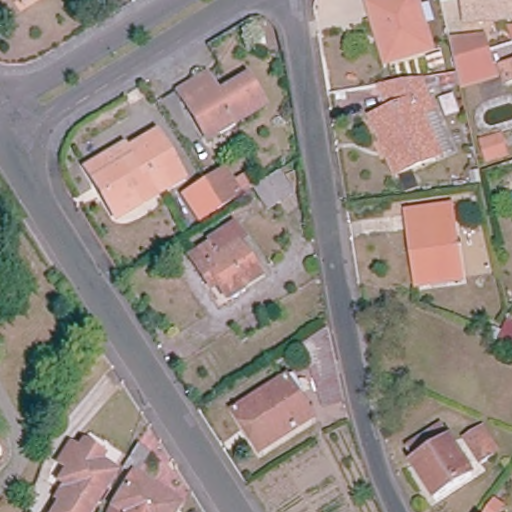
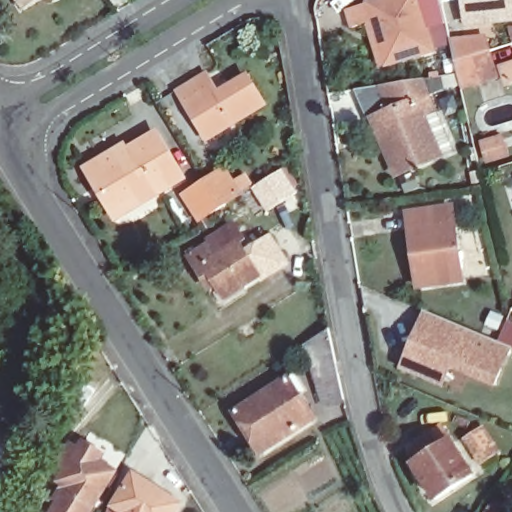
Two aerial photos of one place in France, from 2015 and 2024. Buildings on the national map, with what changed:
unchanged [(17,0),(41,0),(23,11),(17,0)]
unchanged [(420,0),(433,51),(388,61),(373,0),(375,0),(420,0)]
unchanged [(474,28),(468,0),(512,0),(512,19),(474,28)]
unchanged [(457,73),(451,40),(489,35),(500,84),(426,98),(421,81),(457,73)]
unchanged [(205,71),(217,93),(247,74),(266,107),(208,143),(175,90),(205,71)]
unchanged [(426,98),(429,105),(432,119),(424,121),(438,166),(394,179),(375,118),(392,113),(385,87),(421,81),(426,98)]
unchanged [(87,174),(124,147),(128,155),(156,135),(183,179),(161,194),(154,185),(112,215),(87,174)]
unchanged [(293,192),(271,209),(254,185),(278,170),(293,192)]
unchanged [(223,171),(238,196),(221,209),(204,220),(187,192),(205,181),(223,171)]
unchanged [(458,210),(468,280),(422,286),(413,216),(458,210)]
unchanged [(206,234),(214,245),(235,231),(257,265),(222,288),(209,267),(201,271),(185,246),(206,234)]
new [(497,341),(506,320),(512,323),(512,349),(495,387),(450,370),(442,388),(398,370),(423,310),(497,341)]
unchanged [(331,335),(346,401),(325,406),(310,348),(331,335)]
unchanged [(285,377),(310,416),(258,451),(233,411),(285,377)]
unchanged [(486,425),(504,452),(486,466),(466,438),(486,425)]
unchanged [(442,427),(475,475),(438,499),(409,452),(442,427)]
unchanged [(60,495),(56,492),(64,478),(59,476),(67,462),(59,457),(70,440),(79,445),(83,437),(100,447),(94,458),(112,468),(86,512),(50,512),(60,495)]
unchanged [(136,447),(152,455),(142,473),(126,465),(136,447)]
unchanged [(125,511),(112,506),(132,475),(171,502),(165,512),(125,512),(125,511)]
unchanged [(495,511),(496,512),(494,512),(495,511)]

